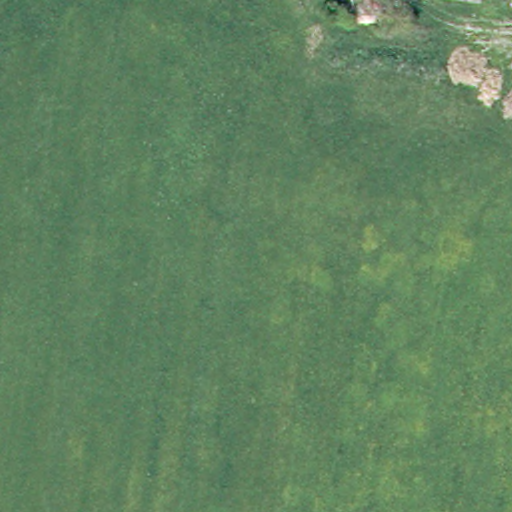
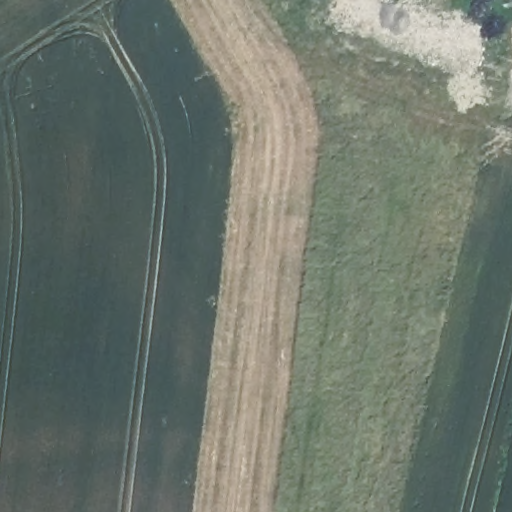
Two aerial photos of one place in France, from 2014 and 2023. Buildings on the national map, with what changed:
[]

